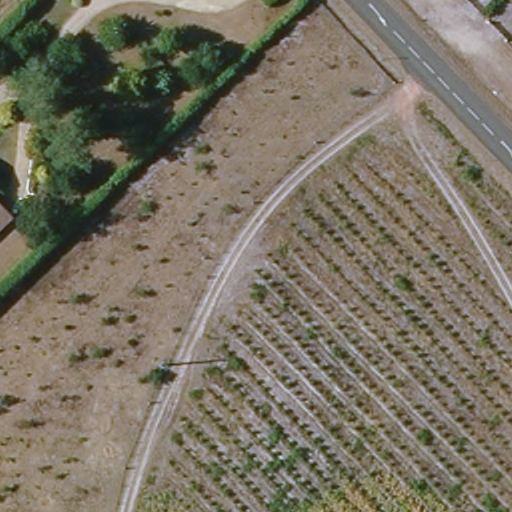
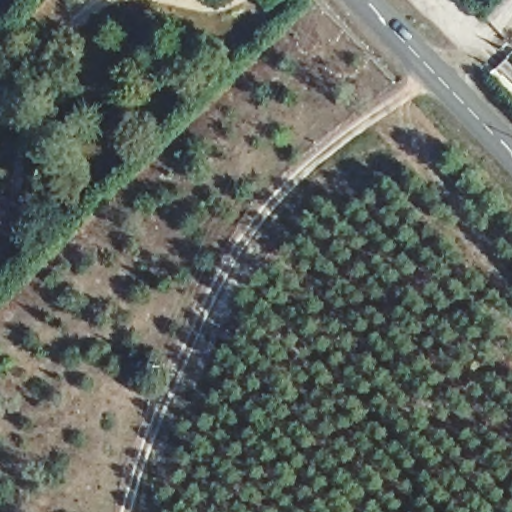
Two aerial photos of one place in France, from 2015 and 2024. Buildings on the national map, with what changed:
unchanged [(0,228),(0,215),(6,222),(0,228)]

